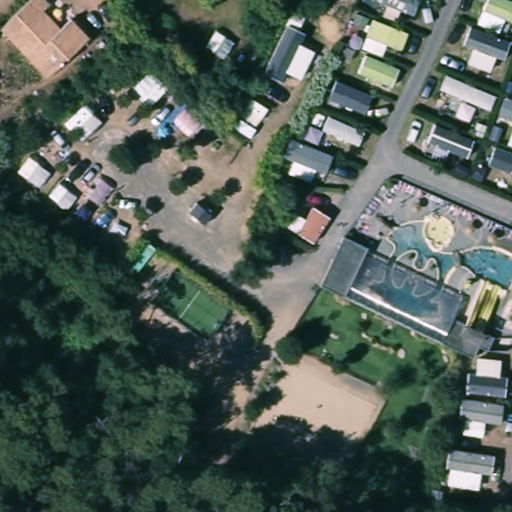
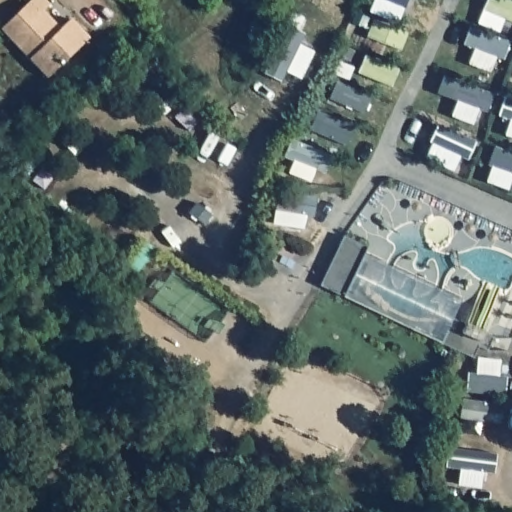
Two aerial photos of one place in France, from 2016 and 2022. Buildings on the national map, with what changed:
unchanged [(27,0),(48,0),(50,2),(44,9),(60,27),(71,17),(90,38),(48,76),(0,26),(0,25),(26,1),(27,0)]
unchanged [(364,269),(350,299),(319,284),(334,254),(364,269)]

